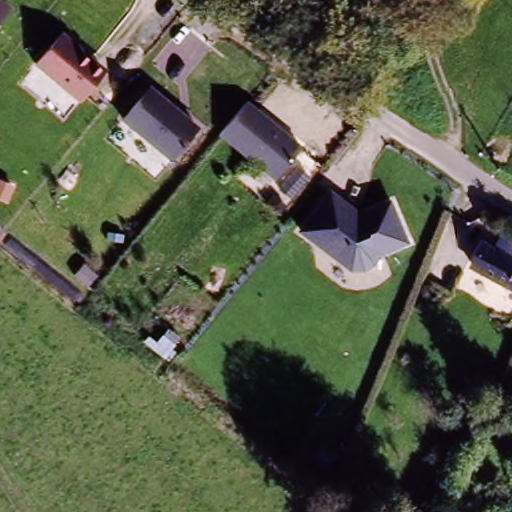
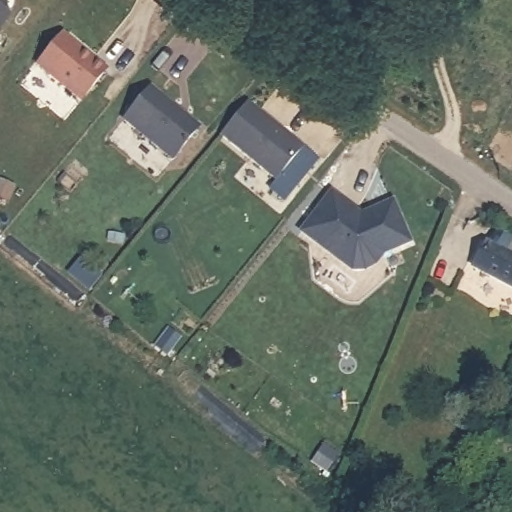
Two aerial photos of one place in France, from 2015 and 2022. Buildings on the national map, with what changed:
unchanged [(13,10),(0,24),(0,0),(2,0),(13,10)]
unchanged [(36,66),(63,32),(110,71),(80,101),(36,66)]
unchanged [(128,118),(153,89),(200,127),(175,157),(128,118)]
unchanged [(300,148),(267,188),(245,171),(250,164),(221,138),(247,103),(300,148)]
unchanged [(302,231),(333,192),(361,214),(393,201),(415,244),(384,256),(381,265),(351,270),(302,231)]
unchanged [(485,247),(497,255),(503,245),(512,249),(512,295),(472,274),(485,247)]

